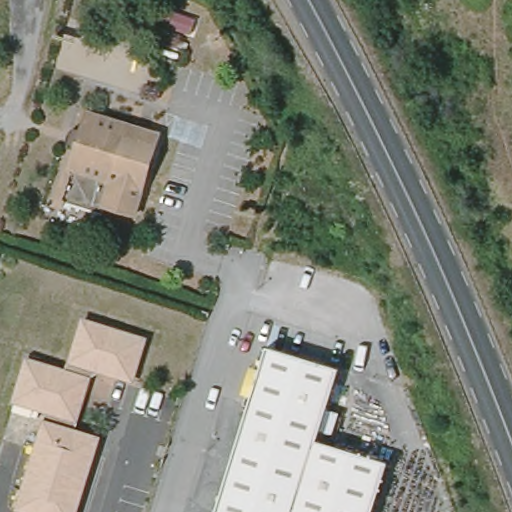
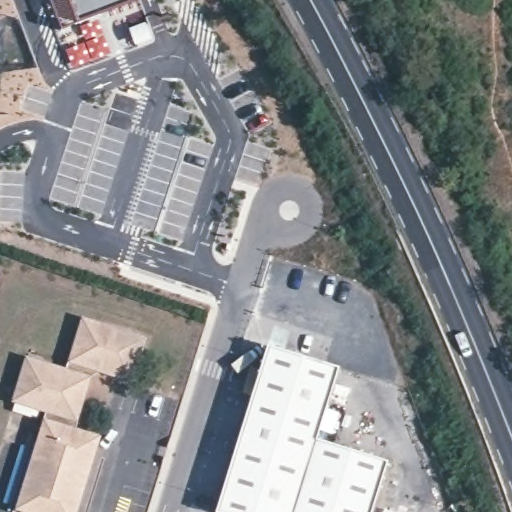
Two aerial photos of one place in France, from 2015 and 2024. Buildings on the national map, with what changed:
new [(50,0),(133,0),(61,30),(50,0)]
demolished [(135,216),(106,207),(104,213),(62,200),(77,150),(73,149),(68,147),(73,128),(83,131),(88,113),(159,134),(135,216)]
unchanged [(35,447),(48,407),(14,396),(26,355),(66,367),(80,322),(82,316),(89,318),(137,334),(144,335),(142,341),(133,370),(131,377),(124,375),(91,364),(71,426),(97,434),(72,512),(38,512),(17,505),(5,502),(23,443),(35,447)]
unchanged [(335,369),(312,441),(383,463),(375,489),(233,445),(263,347),(335,369)]
unchanged [(375,489),(368,512),(212,512),(233,445),(375,489)]
new [(384,509),(392,512),(383,512),(384,509)]

